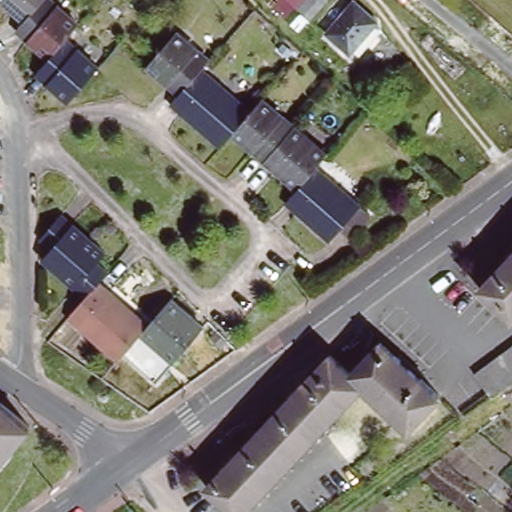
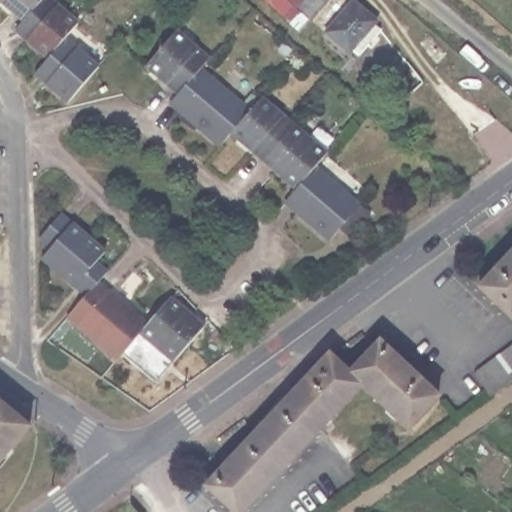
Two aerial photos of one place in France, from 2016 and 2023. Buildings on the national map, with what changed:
unchanged [(37,77),(50,63),(17,34),(25,24),(0,2),(0,0),(47,0),(79,28),(66,42),(98,71),(68,105),(37,77)]
unchanged [(297,10),(306,0),(326,0),(310,20),(297,10)]
unchanged [(377,21),(375,24),(382,30),(361,56),(353,51),(351,54),(325,33),(352,0),(377,21)]
unchanged [(369,219),(350,241),(339,232),(328,243),(285,205),(297,193),(232,136),(220,150),(172,107),(179,98),(147,70),(177,36),(209,64),(202,73),(250,115),(261,103),(292,130),(325,159),(315,172),(358,210),(369,219)]
unchanged [(53,252),(41,242),(62,219),(105,257),(97,266),(109,277),(100,287),(148,329),(172,303),(205,333),(180,360),(53,252)]
unchanged [(180,360),(175,367),(142,338),(120,364),(70,319),(87,300),(45,262),(53,252),(180,360)]
unchanged [(512,254),(512,319),(480,288),(512,254)]
unchanged [(350,373),(381,340),(440,395),(408,428),(362,386),(244,512),(234,512),(206,486),(328,356),(330,355),(350,373)]
unchanged [(475,373),(512,346),(512,380),(491,395),(475,373)]
unchanged [(1,400),(35,428),(0,469),(0,401),(1,400)]

